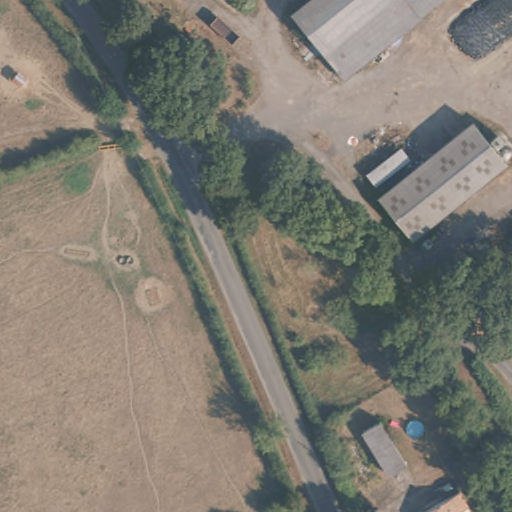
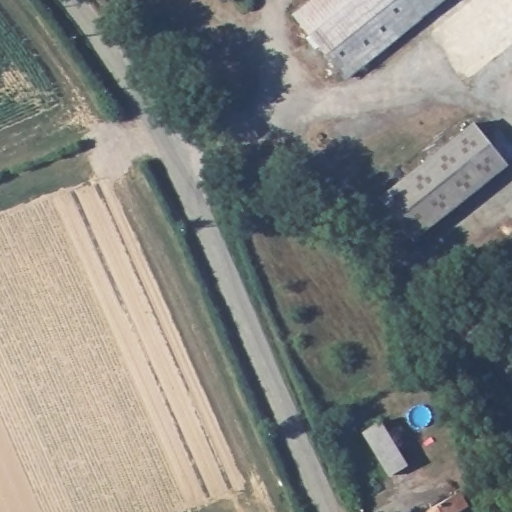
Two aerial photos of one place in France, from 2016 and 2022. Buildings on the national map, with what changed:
unchanged [(323,49),(293,10),(306,0),(385,0),(323,49)]
unchanged [(385,0),(411,0),(415,5),(422,13),(344,75),(323,49),(385,0)]
unchanged [(415,5),(411,0),(421,0),(415,5)]
unchanged [(472,121),(503,163),(409,238),(376,195),(472,121)]
unchanged [(405,465),(388,476),(363,432),(380,421),(405,465)]
unchanged [(465,512),(431,512),(465,492),(474,506),(465,512)]

